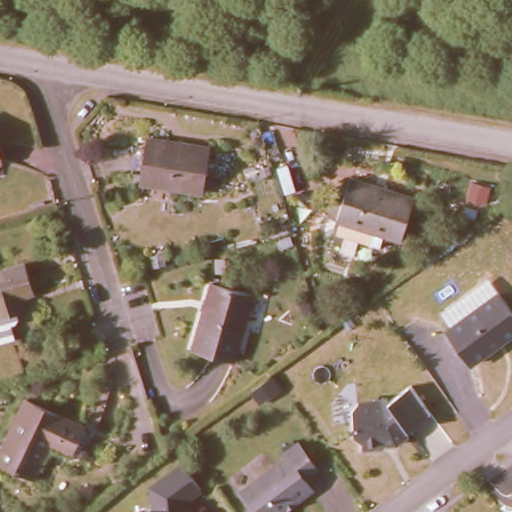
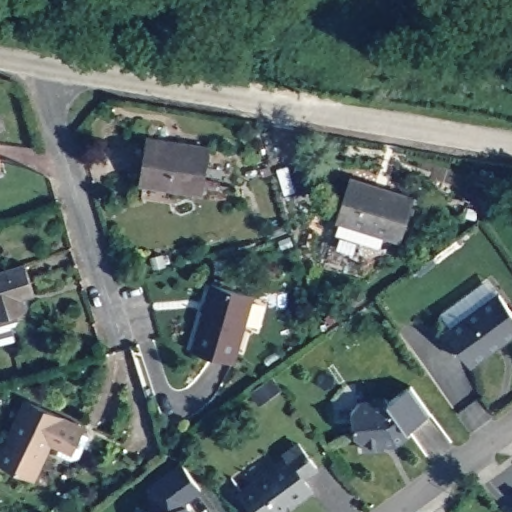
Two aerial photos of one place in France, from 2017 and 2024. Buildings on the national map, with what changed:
unchanged [(209,153),(202,197),(140,186),(147,143),(209,153)]
unchanged [(415,199),(401,240),(336,219),(351,179),(415,199)]
unchanged [(33,293),(23,296),(26,309),(0,317),(0,270),(25,263),(33,293)]
unchanged [(252,295),(233,360),(193,349),(212,283),(252,295)]
unchanged [(512,337),(471,367),(440,330),(495,291),(512,312),(512,337)]
unchanged [(435,406),(407,422),(408,436),(361,447),(358,407),(387,402),(412,378),(435,406)]
unchanged [(84,428),(90,437),(79,457),(67,459),(49,450),(35,479),(0,462),(0,453),(25,400),(84,428)]
unchanged [(293,512),(260,512),(243,487),(282,460),(280,456),(303,441),(325,467),(311,481),(320,491),(293,512)]
unchanged [(206,505),(194,512),(134,512),(134,508),(155,505),(152,488),(191,466),(206,505)]

